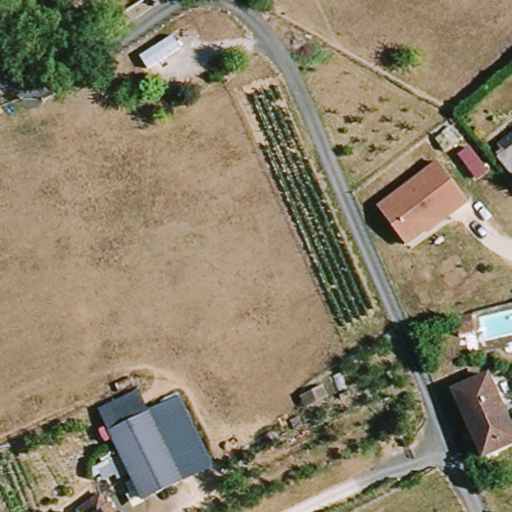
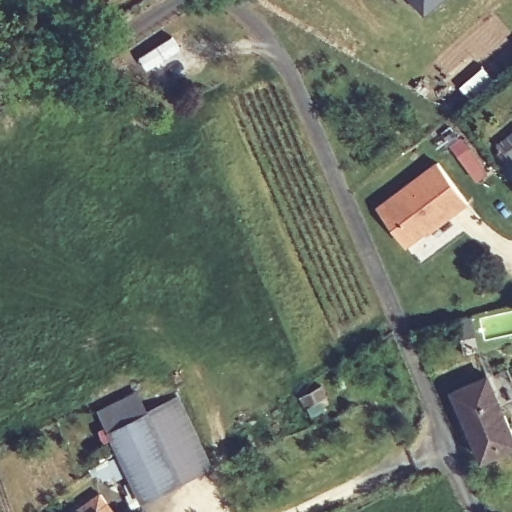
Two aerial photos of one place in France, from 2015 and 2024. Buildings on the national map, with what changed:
new [(414,0),(441,0),(426,13),(414,0)]
unchanged [(181,34),(189,49),(148,73),(141,57),(181,34)]
unchanged [(499,159),(496,156),(501,151),(497,145),(512,133),(512,175),(499,159)]
unchanged [(377,205),(437,162),(468,201),(411,248),(377,205)]
unchanged [(484,457),(455,392),(488,377),(512,431),(512,445),(484,457)]
unchanged [(100,407),(139,387),(151,411),(181,397),(214,467),(144,502),(100,407)]
unchanged [(78,512),(88,505),(93,512),(78,512)]
unchanged [(107,505),(112,512),(97,512),(107,505)]

